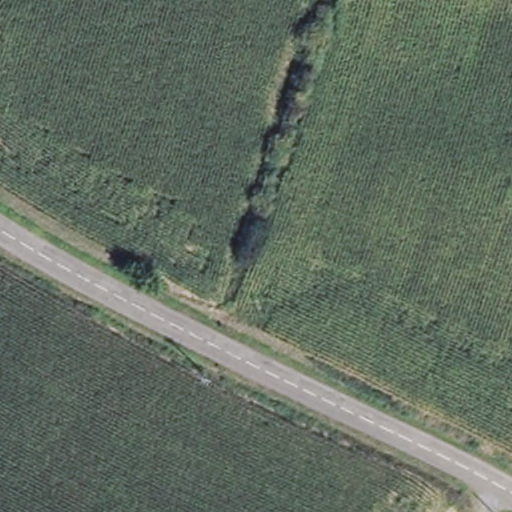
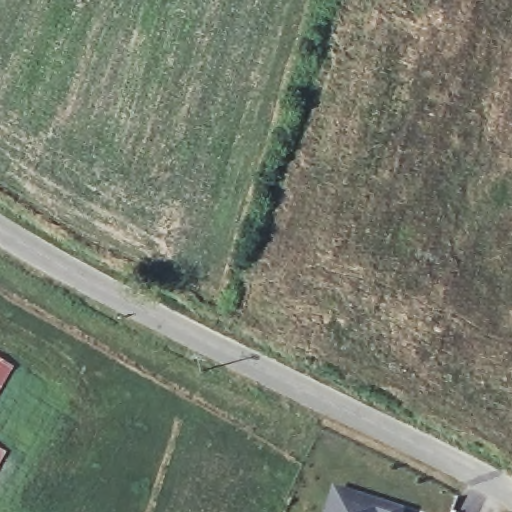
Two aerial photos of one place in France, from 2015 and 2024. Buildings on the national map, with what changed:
new [(14,369),(0,393),(0,360),(14,369)]
new [(7,453),(0,467),(0,449),(7,453)]
new [(332,488),(405,512),(325,512),(332,488)]

